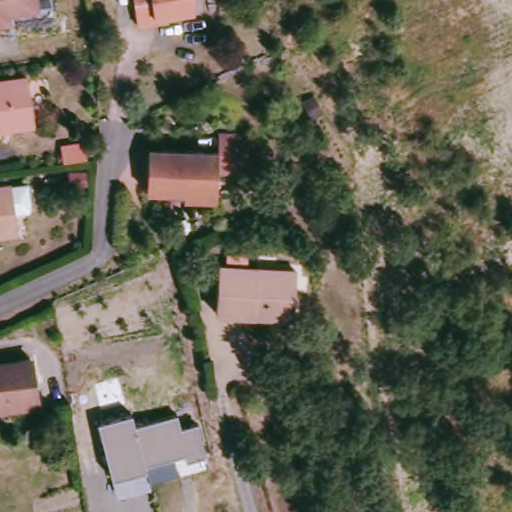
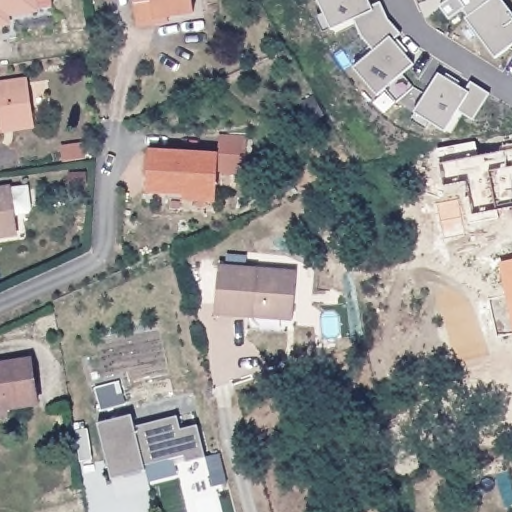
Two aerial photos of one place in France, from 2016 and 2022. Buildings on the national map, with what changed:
unchanged [(9,29),(0,30),(0,0),(35,0),(37,15),(7,19),(9,29)]
unchanged [(156,15),(157,24),(135,26),(132,0),(191,0),(192,11),(167,14),(156,15)]
new [(363,38),(355,20),(332,29),(320,0),(369,0),(372,8),(380,2),(386,20),(402,35),(394,40),(414,64),(405,74),(415,88),(398,101),(388,87),(378,96),(355,68),(375,51),(363,38)]
new [(492,0),(502,0),(512,13),(512,47),(495,59),(462,12),(450,21),(440,8),(446,4),(445,0),(489,0),(490,1),(492,0)]
new [(438,75),(465,91),(471,82),(490,95),(473,122),(458,112),(446,132),(415,115),(438,75)]
unchanged [(1,135),(0,135),(0,85),(30,81),(35,121),(37,130),(1,135)]
unchanged [(318,108),(308,114),(299,96),(308,91),(318,108)]
unchanged [(222,159),(225,141),(251,144),(247,180),(220,177),(217,200),(144,192),(148,151),(222,159)]
unchanged [(59,164),(57,149),(80,145),(82,161),(59,164)]
unchanged [(24,189),(27,212),(24,218),(10,220),(11,232),(0,233),(0,192),(24,189)]
unchanged [(262,308),(262,317),(220,315),(222,271),(299,273),(297,309),(262,308)]
unchanged [(9,410),(6,400),(0,402),(0,365),(25,359),(35,403),(9,410)]
unchanged [(111,476),(98,423),(131,415),(133,427),(177,416),(180,428),(198,424),(205,456),(186,461),(175,467),(176,473),(149,483),(150,490),(117,498),(111,476)]

